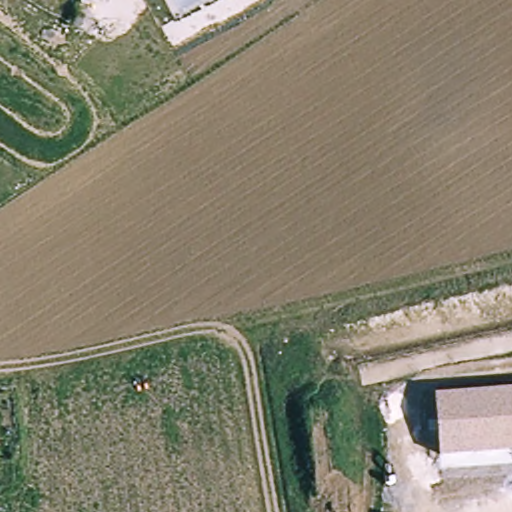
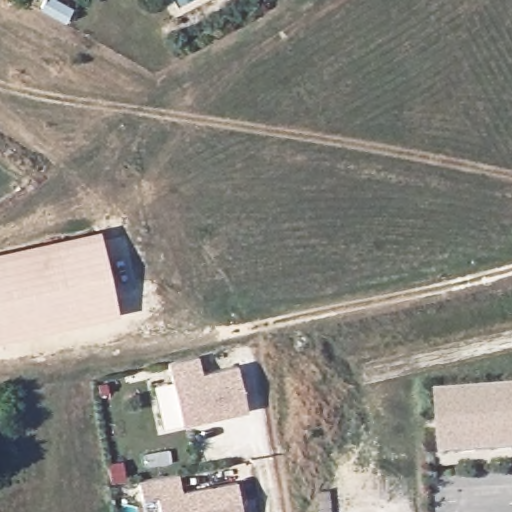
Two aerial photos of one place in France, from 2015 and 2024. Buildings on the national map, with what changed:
new [(98,229),(117,314),(0,338),(0,250),(98,229)]
new [(198,356),(201,372),(236,366),(246,411),(181,424),(167,363),(198,356)]
unchanged [(437,393),(512,388),(512,451),(441,455),(437,393)]
new [(178,474),(181,489),(236,481),(242,512),(159,512),(157,496),(142,499),(137,480),(178,474)]

